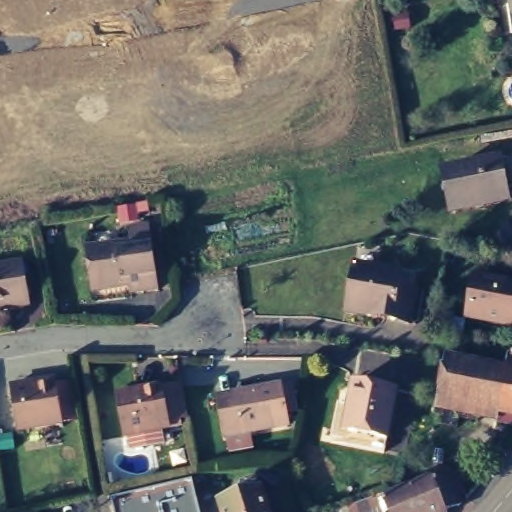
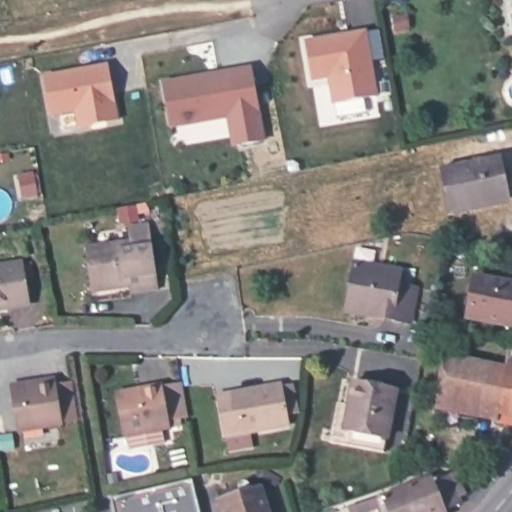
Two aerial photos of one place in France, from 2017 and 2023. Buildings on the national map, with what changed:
new [(362,27),(373,93),(330,100),(325,74),(308,77),(302,39),(362,27)]
new [(106,61),(117,116),(78,124),(75,107),(51,112),(43,74),(106,61)]
new [(247,65),(259,137),(235,141),(230,118),(225,115),(196,120),(178,125),(172,88),(247,65)]
unchanged [(450,200),(442,164),(495,152),(502,187),(450,200)]
unchanged [(130,281),(103,285),(96,244),(150,235),(158,283),(141,286),(132,287),(130,281)]
unchanged [(21,260),(28,301),(0,306),(0,264),(21,260)]
unchanged [(345,311),(352,272),(353,264),(375,268),(397,271),(395,282),(413,285),(407,322),(392,320),(367,315),(345,311)]
unchanged [(512,323),(464,315),(472,273),(512,281),(512,323)]
unchanged [(445,363),(490,373),(505,376),(510,356),(512,357),(512,424),(434,407),(445,363)]
unchanged [(348,438),(350,426),(355,400),(350,400),(355,376),(395,383),(387,431),(385,444),(348,438)]
unchanged [(226,445),(223,432),(220,433),(212,398),(239,392),(238,389),(275,381),(275,383),(285,380),(290,408),(281,410),(282,419),(245,427),(248,440),(226,445)]
unchanged [(162,426),(164,441),(131,446),(129,432),(122,433),(116,390),(140,386),(147,385),(163,383),(163,385),(182,382),(187,416),(169,420),(170,425),(162,426)]
unchanged [(40,429),(20,432),(12,390),(35,385),(36,390),(57,386),(62,422),(63,425),(40,429)]
unchanged [(436,485),(455,476),(462,495),(445,502),(447,510),(442,512),(393,512),(384,492),(430,472),(436,485)]
unchanged [(195,480),(202,512),(114,512),(111,499),(195,480)]
unchanged [(262,489),(270,512),(227,512),(223,500),(262,489)]

